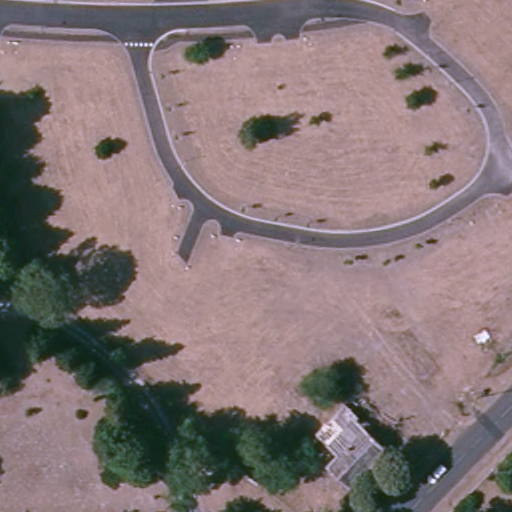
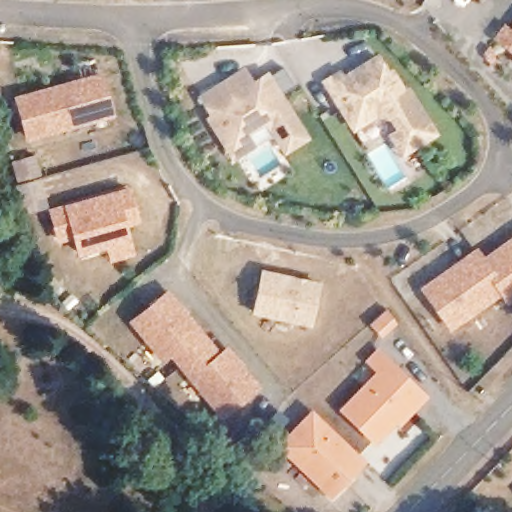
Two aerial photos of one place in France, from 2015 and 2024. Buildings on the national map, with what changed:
new [(368,130),(363,121),(357,125),(328,77),(343,69),(347,76),(356,70),(383,53),(393,70),(397,67),(410,89),(414,86),(441,130),(424,141),(411,140),(395,113),(380,110),(385,118),(368,130)]
new [(242,70),(254,90),(256,81),(270,72),(309,135),(289,147),(270,117),(229,142),(213,115),(217,112),(205,94),(228,79),(242,70)]
new [(25,141),(13,96),(103,71),(115,116),(25,141)]
new [(106,262),(101,249),(76,256),(71,242),(59,246),(46,208),(130,186),(141,222),(127,226),(136,255),(106,262)]
new [(484,255),(512,236),(512,301),(507,305),(500,296),(450,331),(419,288),(477,246),(484,255)]
new [(321,282),(313,326),(252,314),(261,268),(321,282)]
new [(222,414),(193,378),(171,352),(161,358),(133,322),(169,292),(220,355),(228,348),(257,386),(222,414)]
new [(400,427),(396,423),(375,445),(339,410),(376,372),(365,361),(378,347),(429,396),(400,427)]
demolished [(345,475),(320,452),(331,441),(322,432),(343,408),(378,438),(345,475)]
new [(330,497),(277,445),(312,410),(367,461),(330,497)]

